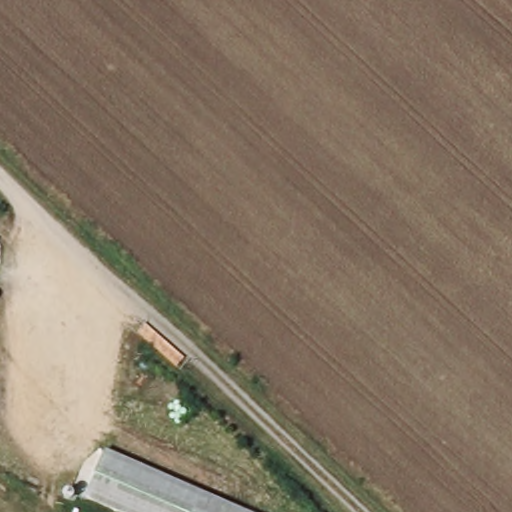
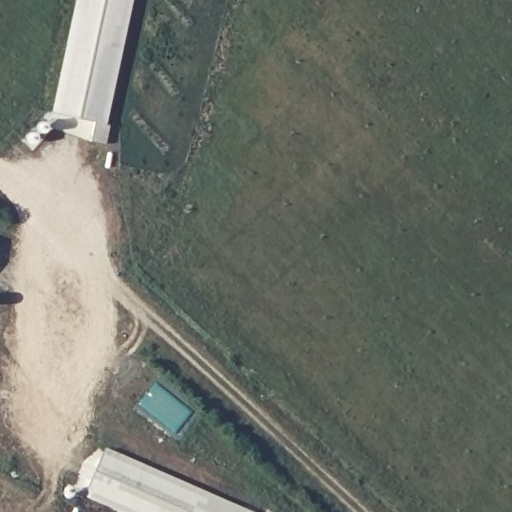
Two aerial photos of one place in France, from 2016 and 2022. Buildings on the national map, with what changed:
new [(105,125),(108,126),(104,142),(90,140),(94,121),(51,111),(75,0),(131,0),(105,125)]
unchanged [(126,512),(84,494),(103,448),(248,512),(126,512)]

